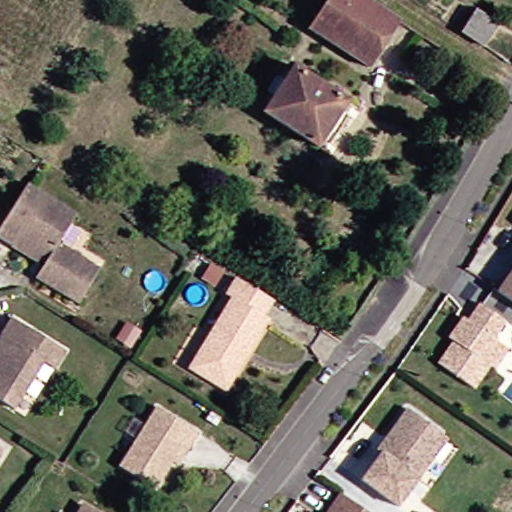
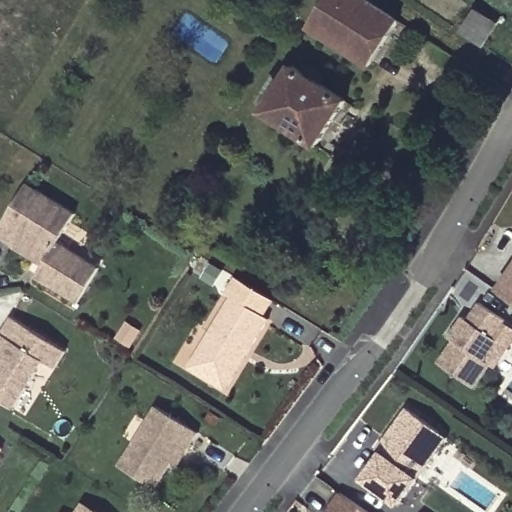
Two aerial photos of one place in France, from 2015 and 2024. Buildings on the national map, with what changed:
unchanged [(298,28),(316,0),(356,0),(388,20),(358,67),(298,28)]
unchanged [(474,10),(497,24),(483,46),(460,31),(474,10)]
unchanged [(287,65),(342,100),(311,148),(256,112),(287,65)]
unchanged [(0,241),(0,219),(21,186),(69,216),(51,244),(93,270),(71,304),(29,277),(37,264),(6,246),(6,245),(0,241)]
unchanged [(500,291),(491,286),(512,256),(512,300),(500,291)]
unchanged [(205,386),(182,371),(227,298),(222,295),(231,279),(269,302),(268,302),(259,317),(264,320),(244,353),(238,362),(228,379),(218,394),(205,386)]
unchanged [(489,363),(484,360),(468,382),(432,358),(448,336),(443,332),(456,313),(461,316),(473,299),(499,316),(487,333),(492,337),(502,343),(489,363)]
unchanged [(0,406),(0,319),(2,316),(56,350),(45,367),(15,415),(4,408),(0,406)]
unchanged [(166,461),(149,488),(113,465),(126,443),(116,436),(129,415),(140,422),(150,406),(176,422),(193,432),(182,449),(172,465),(166,461)]
unchanged [(376,450),(385,437),(406,408),(439,432),(447,437),(432,458),(397,507),(360,480),(380,453),(376,450)]
unchanged [(334,492),(362,512),(320,512),(334,492)]
unchanged [(75,509),(80,512),(73,512),(75,509)]

